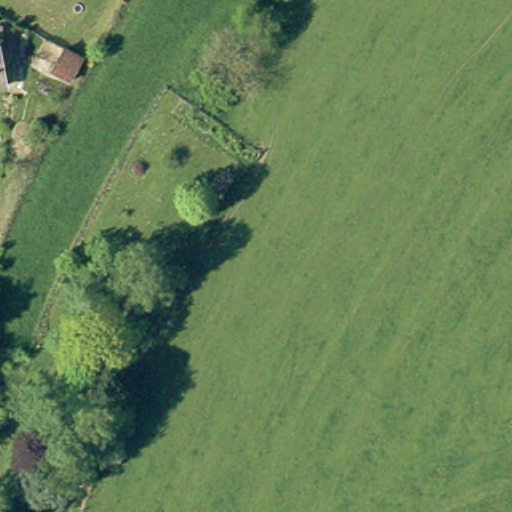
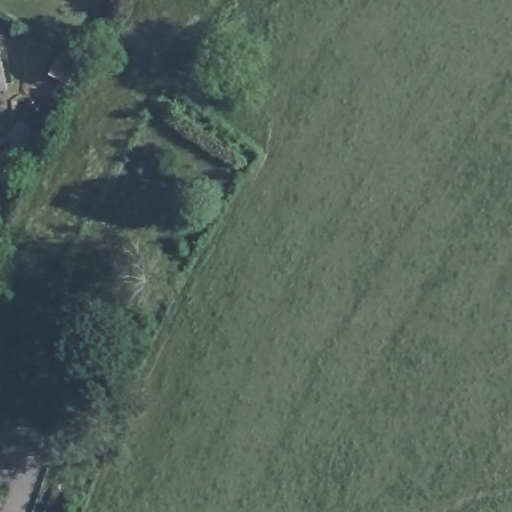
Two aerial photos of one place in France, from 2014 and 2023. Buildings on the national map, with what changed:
unchanged [(3,48),(0,48),(0,35),(3,48)]
unchanged [(71,41),(88,54),(74,80),(56,70),(71,41)]

